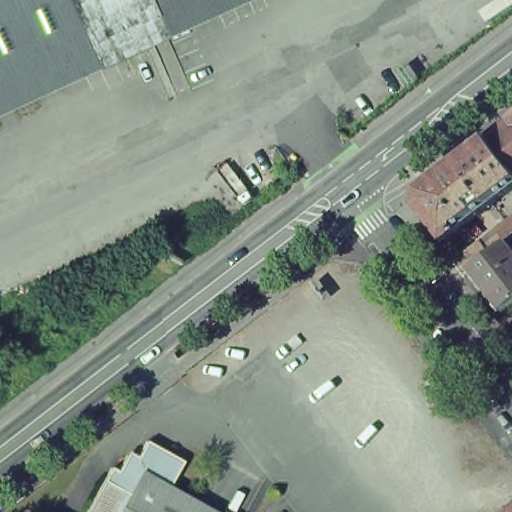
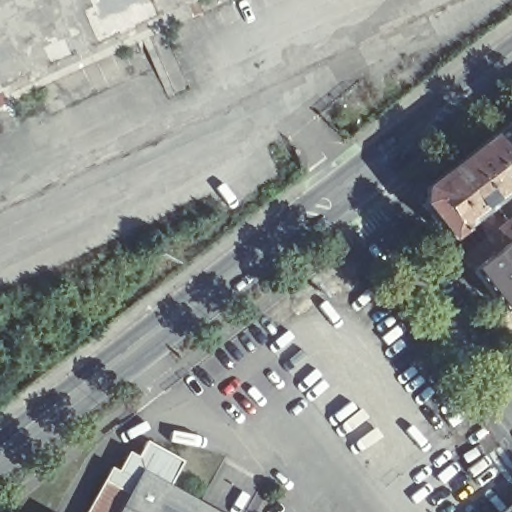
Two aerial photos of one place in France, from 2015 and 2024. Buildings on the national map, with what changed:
demolished [(0,92),(0,0),(195,0),(0,92)]
unchanged [(512,166),(490,138),(512,122),(512,166)]
unchanged [(512,191),(495,204),(460,160),(490,138),(512,166),(512,191)]
unchanged [(495,204),(448,240),(422,205),(423,189),(460,160),(495,204)]
unchanged [(503,236),(499,230),(508,223),(512,220),(512,242),(511,242),(512,244),(512,305),(503,311),(473,272),(462,258),(484,242),(488,248),(503,236)]
unchanged [(112,468),(118,472),(124,461),(127,462),(136,460),(147,441),(182,462),(169,486),(142,471),(130,494),(105,480),(112,468)]
unchanged [(130,494),(142,471),(169,486),(215,512),(87,512),(105,480),(130,494)]
unchanged [(512,512),(502,512),(512,504),(512,512)]

